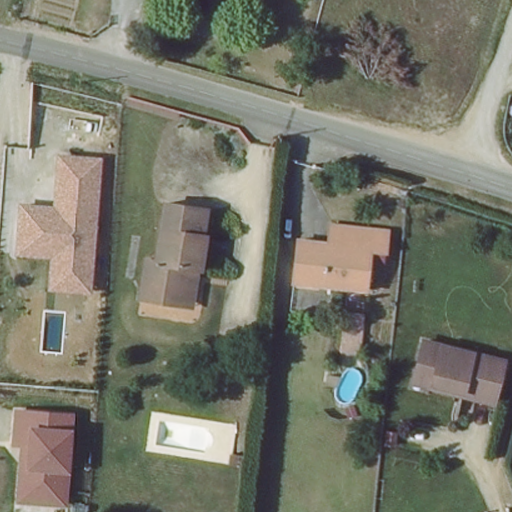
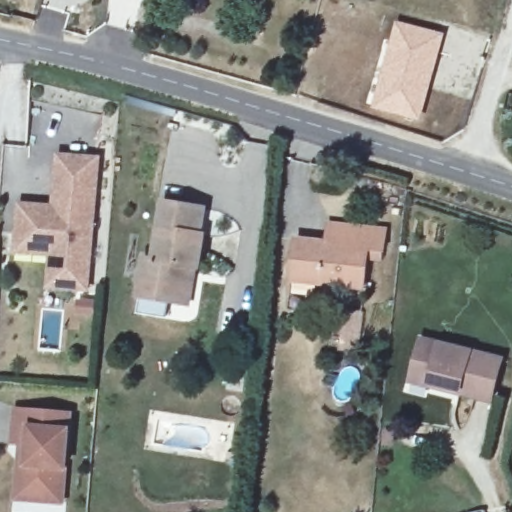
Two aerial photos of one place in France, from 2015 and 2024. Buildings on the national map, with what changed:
new [(381,79),(395,20),(445,32),(422,121),(371,108),(381,79)]
unchanged [(91,293),(48,292),(50,260),(15,258),(18,203),(53,205),(55,154),(105,156),(91,293)]
unchanged [(136,304),(142,257),(152,255),(162,202),(207,209),(190,310),(136,304)]
unchanged [(294,238),(331,241),(334,224),(381,227),(378,246),(363,245),(358,283),(289,277),(294,238)]
unchanged [(423,341),(500,360),(490,400),(412,382),(423,341)]
unchanged [(65,507),(13,504),(18,448),(9,446),(13,408),(73,412),(65,507)]

